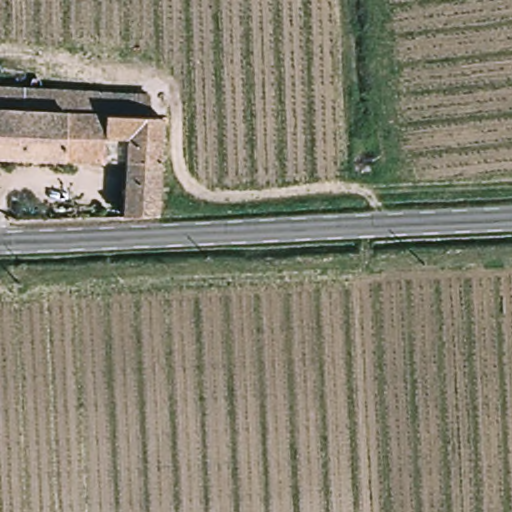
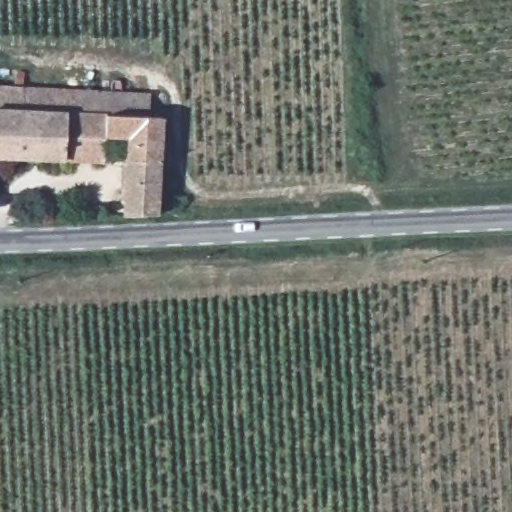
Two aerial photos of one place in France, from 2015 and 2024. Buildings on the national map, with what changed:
unchanged [(103,115),(147,116),(167,116),(158,217),(124,215),(124,161),(105,160),(68,159),(0,159),(0,84),(27,86),(103,87),(103,115)]

